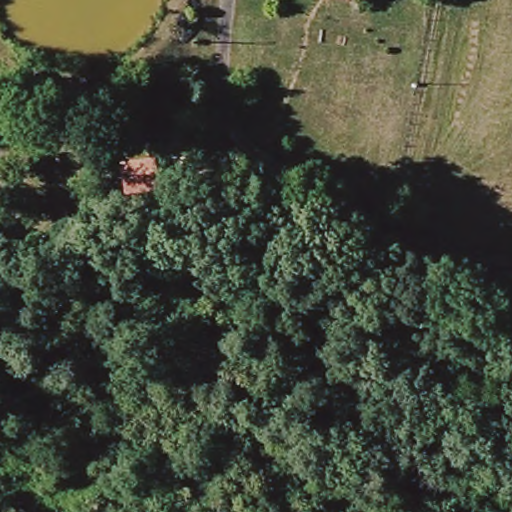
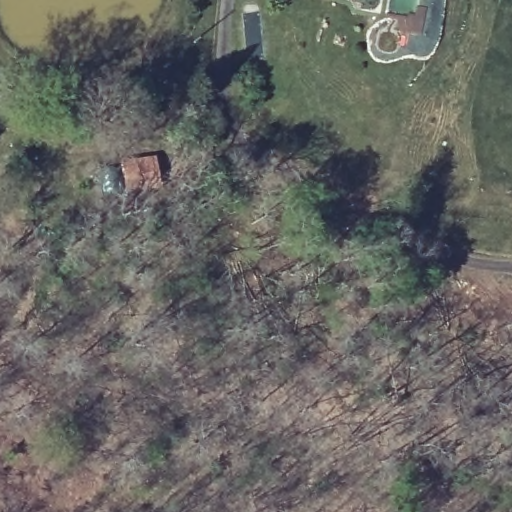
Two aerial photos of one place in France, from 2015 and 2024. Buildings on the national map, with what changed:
unchanged [(343,0),(350,0),(350,1),(343,0)]

